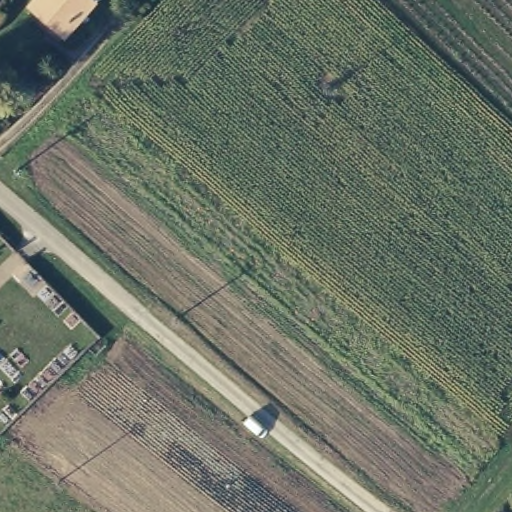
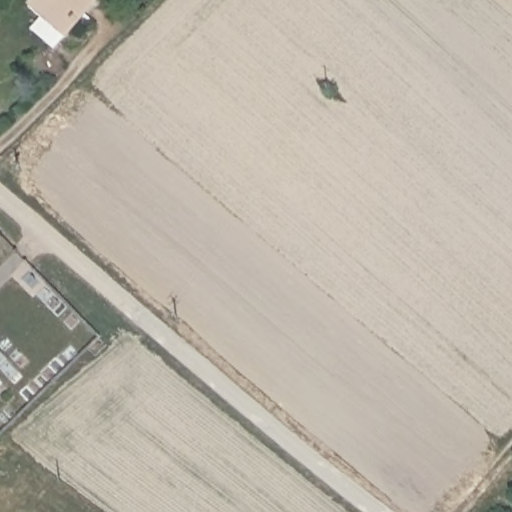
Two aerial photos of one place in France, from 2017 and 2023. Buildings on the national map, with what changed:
unchanged [(30,3),(33,0),(97,0),(63,36),(30,3)]

